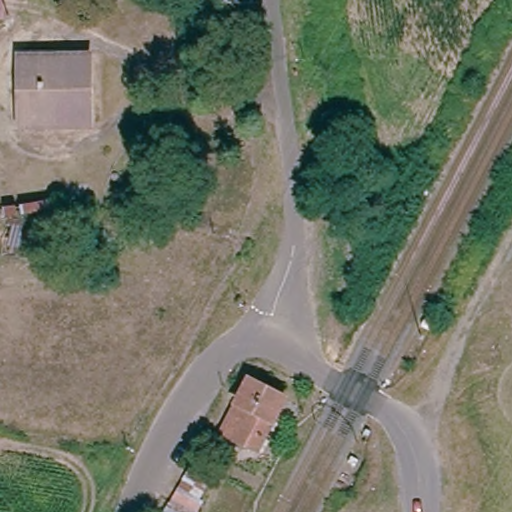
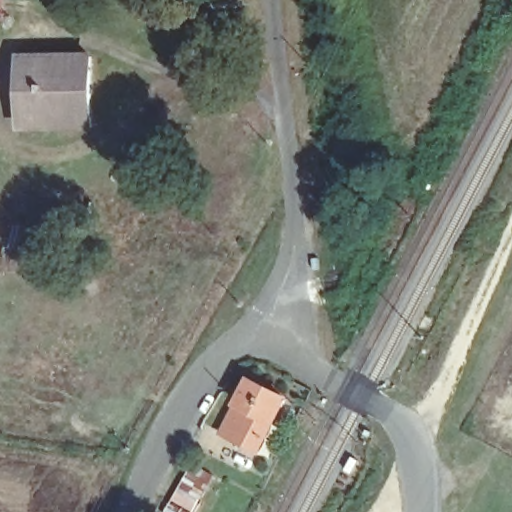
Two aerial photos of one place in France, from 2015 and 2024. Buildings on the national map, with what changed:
unchanged [(1,11),(0,11),(0,0),(1,0),(1,11)]
unchanged [(91,58),(92,62),(95,128),(19,129),(17,60),(91,58)]
unchanged [(93,237),(74,237),(73,225),(20,225),(20,205),(91,203),(94,204),(94,225),(93,235),(93,237)]
unchanged [(282,377),(293,382),(288,392),(277,388),(282,377)]
unchanged [(284,400),(272,423),(271,422),(256,452),(221,434),(231,414),(237,404),(249,382),(284,400)]
unchanged [(182,472),(203,484),(193,501),(197,504),(192,512),(182,512),(164,503),(182,472)]

